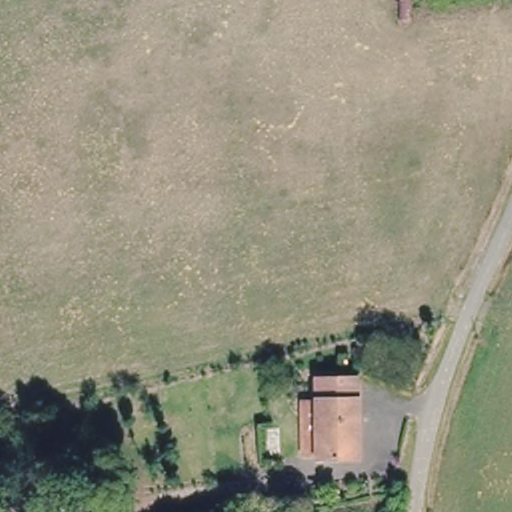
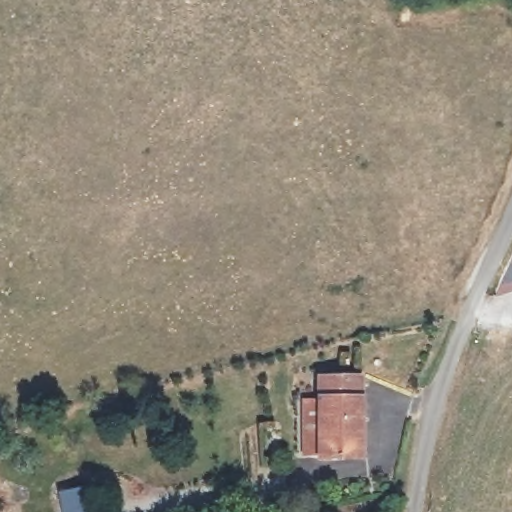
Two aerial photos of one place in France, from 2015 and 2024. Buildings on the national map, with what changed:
unchanged [(368,453),(314,458),(307,402),(322,401),(319,381),(360,375),(368,453)]

